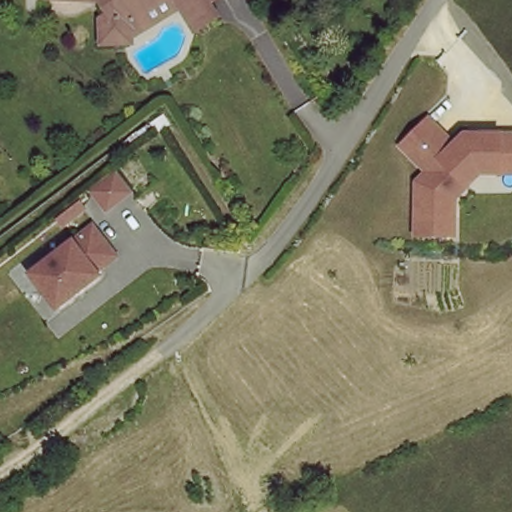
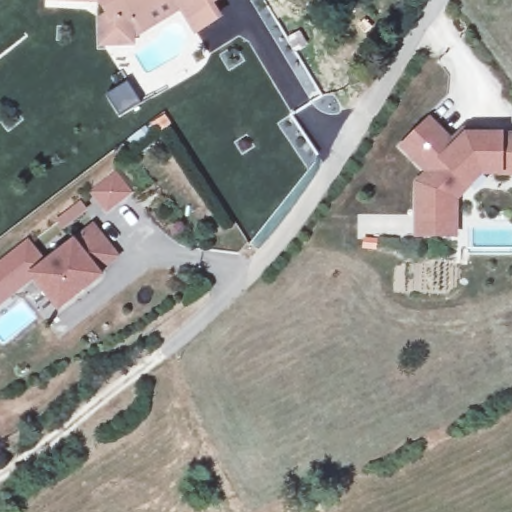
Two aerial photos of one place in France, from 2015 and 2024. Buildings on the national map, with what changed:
unchanged [(128,46),(116,45),(99,45),(99,23),(105,14),(95,0),(157,0),(128,17),(128,46)]
unchanged [(214,19),(192,33),(170,0),(213,0),(205,5),(214,19)]
unchanged [(512,147),(512,162),(484,162),(454,204),(456,224),(418,227),(412,185),(423,174),(395,147),(421,120),(448,146),(459,135),(512,134),(512,147)]
unchanged [(108,215),(92,192),(121,171),(138,195),(108,215)]
unchanged [(93,227),(115,257),(94,273),(97,278),(58,308),(52,300),(33,275),(56,255),(93,227)]
new [(48,262),(33,275),(35,277),(0,305),(0,261),(28,239),(48,262)]

